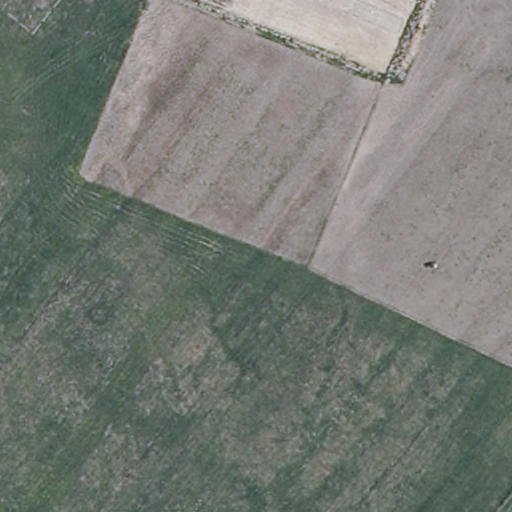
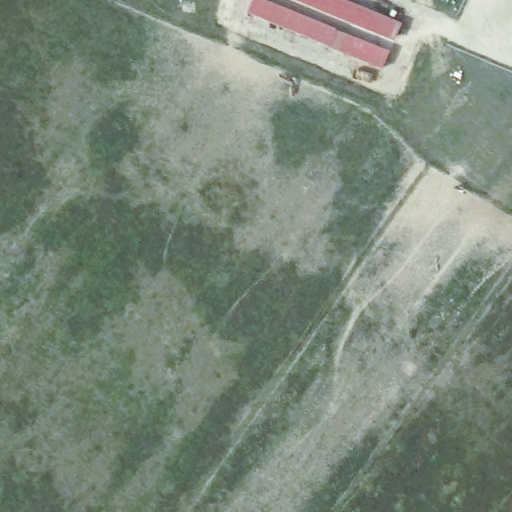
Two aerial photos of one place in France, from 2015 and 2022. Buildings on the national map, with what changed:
new [(253,0),(270,0),(390,49),(385,63),(250,8),(253,0)]
new [(398,32),(390,49),(270,0),(320,0),(398,32)]
new [(404,18),(398,32),(320,0),(360,0),(404,18)]

